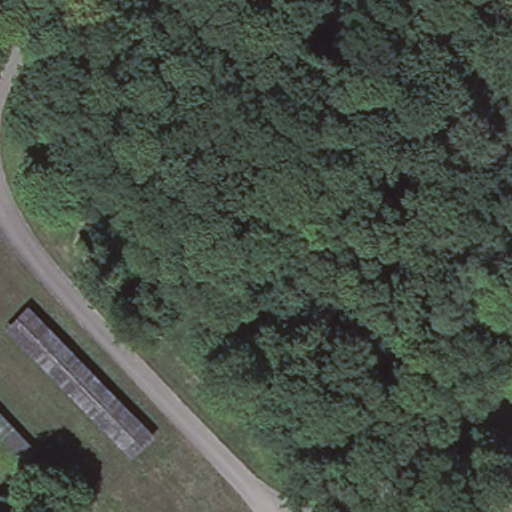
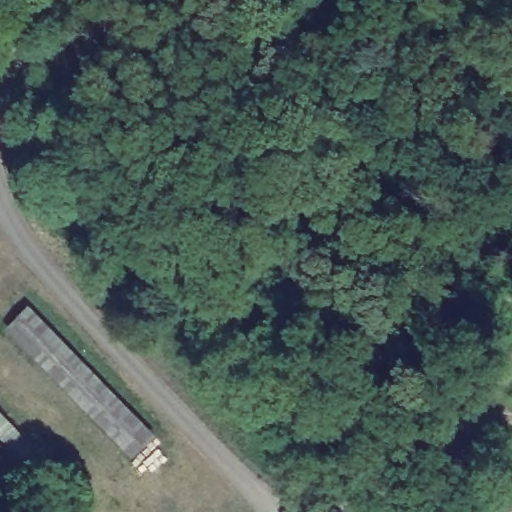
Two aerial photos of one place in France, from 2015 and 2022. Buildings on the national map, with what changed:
unchanged [(0,333),(0,329),(25,303),(142,422),(116,448),(0,333)]
unchanged [(45,458),(29,471),(0,440),(0,410),(45,458)]

